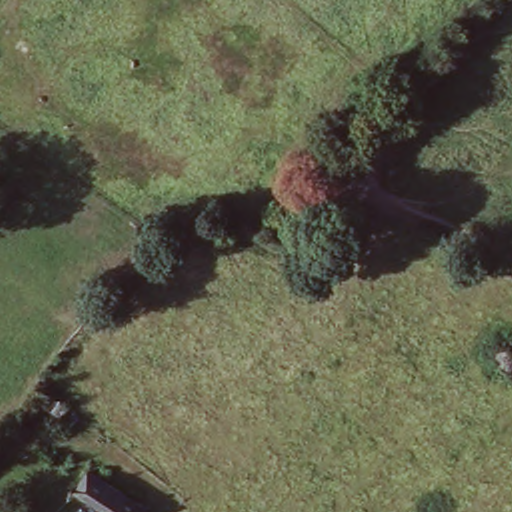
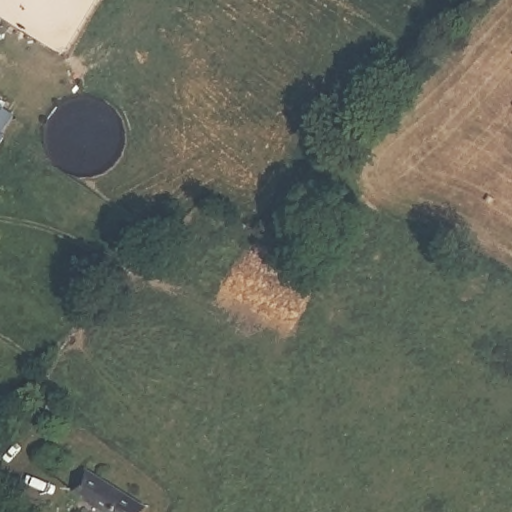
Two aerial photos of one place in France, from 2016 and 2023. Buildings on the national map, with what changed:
new [(3,132),(0,130),(0,102),(15,114),(3,132)]
unchanged [(142,502),(136,512),(98,512),(74,500),(88,474),(142,502)]

